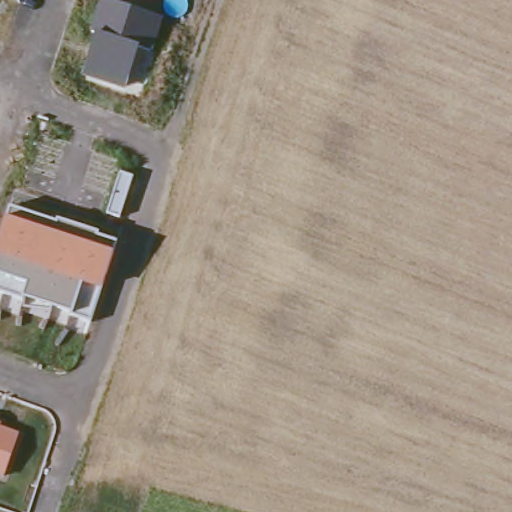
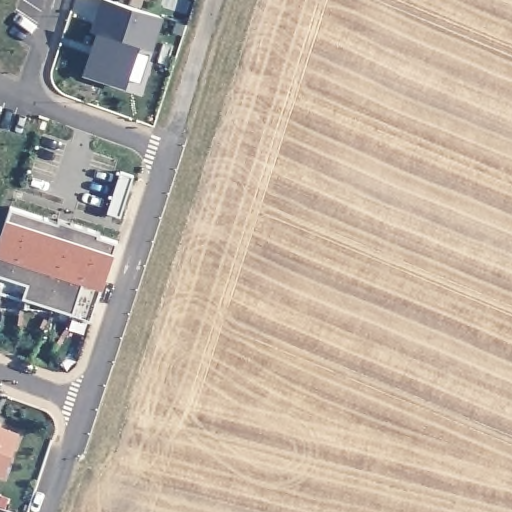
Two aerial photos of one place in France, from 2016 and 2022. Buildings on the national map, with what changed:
unchanged [(98,33),(89,31),(99,0),(106,0),(163,18),(153,52),(138,49),(124,90),(83,75),(98,33)]
unchanged [(11,209),(56,223),(58,220),(99,233),(97,237),(116,243),(113,251),(101,288),(90,320),(72,312),(51,305),(51,310),(23,307),(24,296),(0,290),(0,244),(9,220),(11,209)]
unchanged [(0,425),(0,422),(1,422),(0,425)]
unchanged [(4,477),(0,475),(0,425),(19,432),(4,477)]

